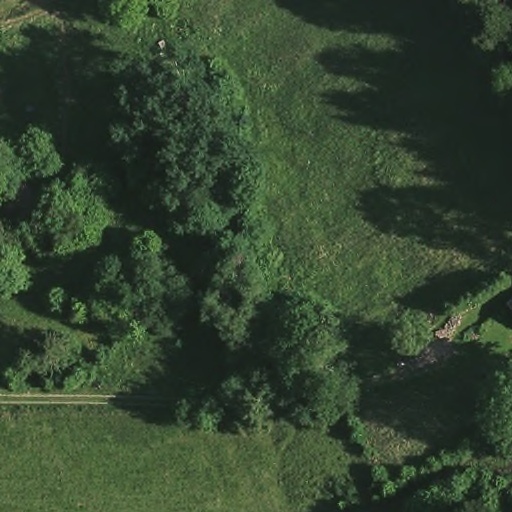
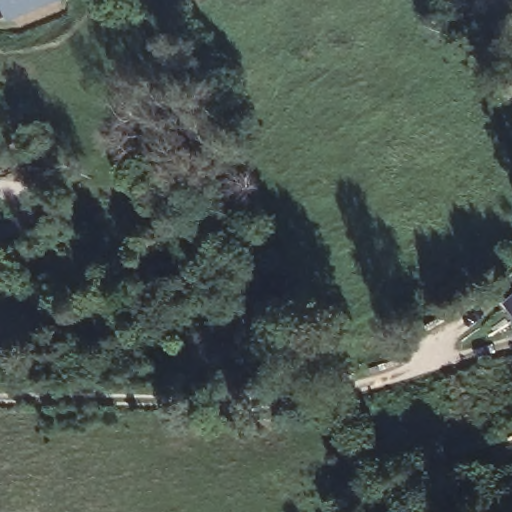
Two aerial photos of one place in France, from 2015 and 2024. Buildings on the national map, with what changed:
new [(0,1),(0,0),(62,0),(7,21),(0,1)]
unchanged [(512,312),(510,309),(512,307),(512,312)]

